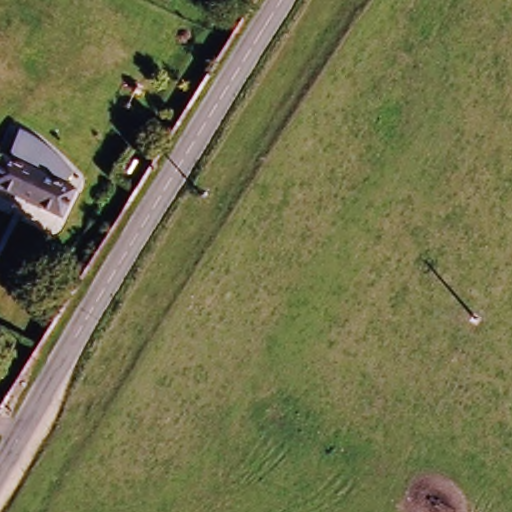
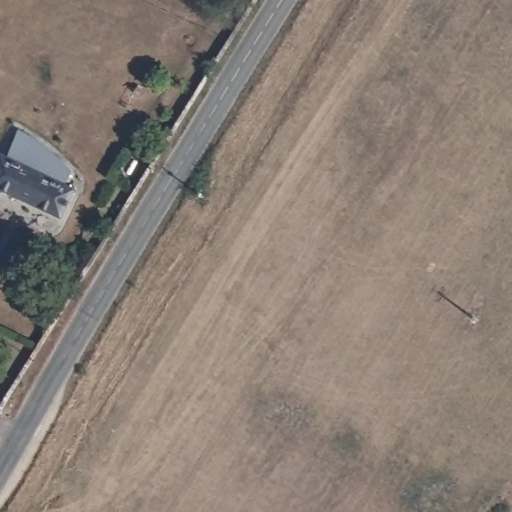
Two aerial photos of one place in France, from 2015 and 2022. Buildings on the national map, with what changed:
unchanged [(15,150),(25,126),(57,143),(78,160),(70,177),(15,150)]
unchanged [(61,224),(0,195),(0,159),(4,151),(7,146),(15,150),(70,177),(80,181),(61,224)]

